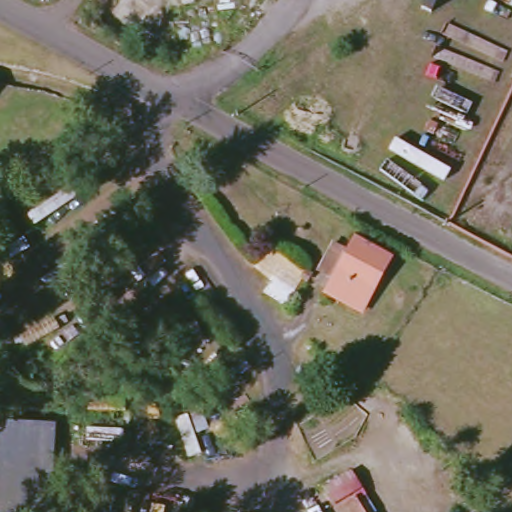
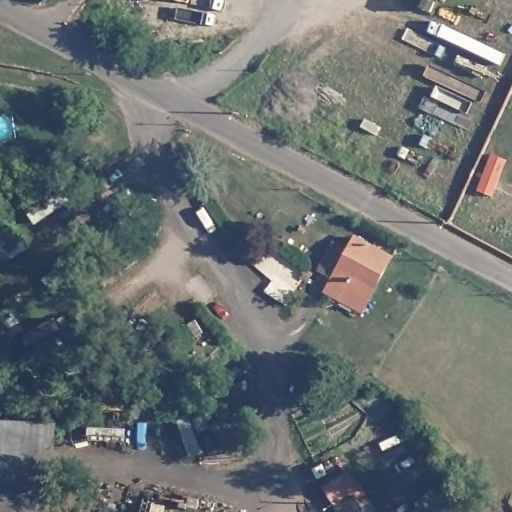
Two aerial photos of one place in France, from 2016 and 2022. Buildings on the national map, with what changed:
unchanged [(418,9),(427,14),(420,24),(412,19),(418,9)]
unchanged [(388,257),(360,309),(327,292),(357,240),(388,257)]
unchanged [(58,427),(46,512),(12,512),(0,510),(0,439),(2,422),(58,427)]
unchanged [(358,496),(369,512),(337,512),(358,496)]

